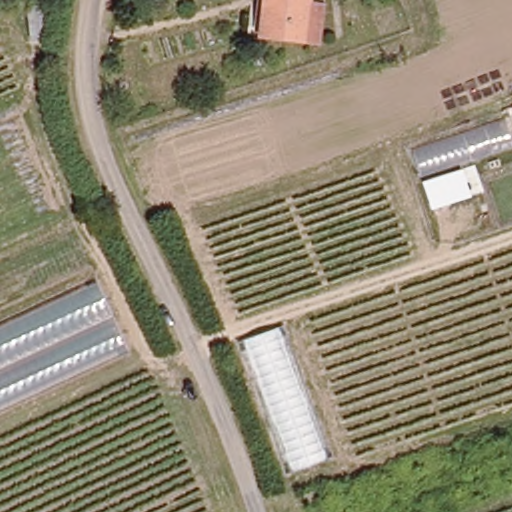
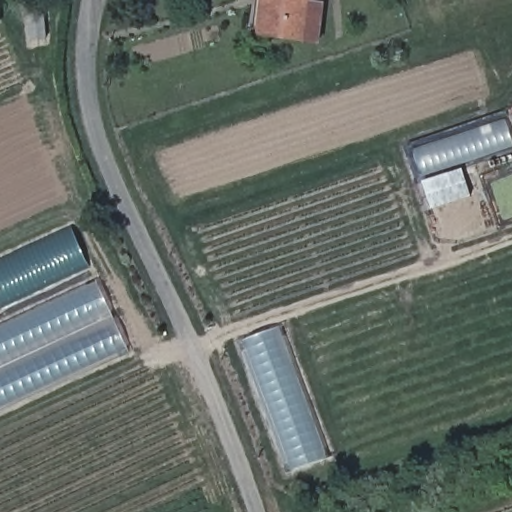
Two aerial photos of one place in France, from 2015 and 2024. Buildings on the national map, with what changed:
unchanged [(322,0),(320,15),(318,41),(259,34),(247,32),(250,0),(322,0)]
unchanged [(29,38),(27,6),(47,4),(50,37),(29,38)]
unchanged [(505,117),(511,147),(422,176),(412,147),(505,117)]
new [(70,227),(89,267),(0,307),(0,259),(70,227)]
unchanged [(0,412),(0,327),(99,282),(131,351),(0,412)]
unchanged [(330,457),(288,475),(239,342),(278,327),(330,457)]

